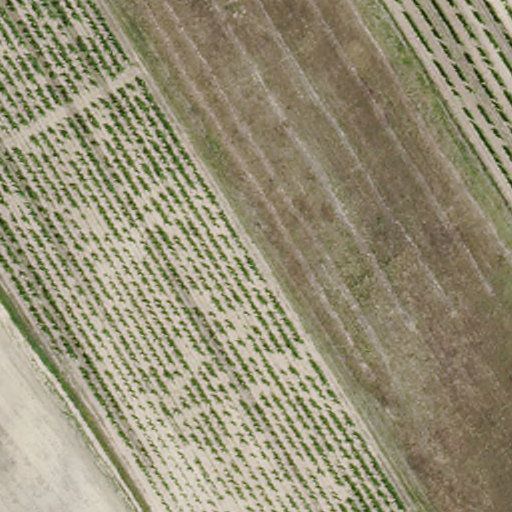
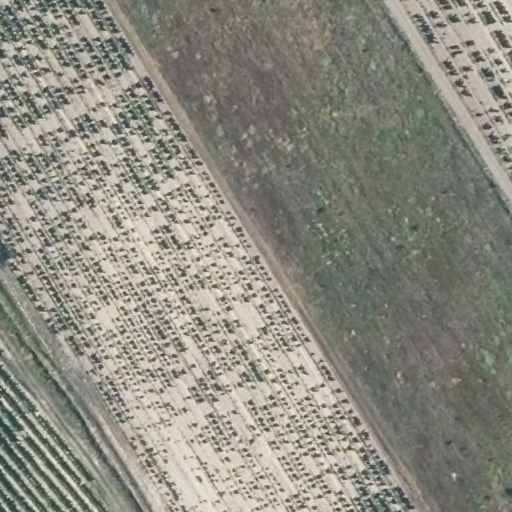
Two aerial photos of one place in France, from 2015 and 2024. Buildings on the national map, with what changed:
[]

